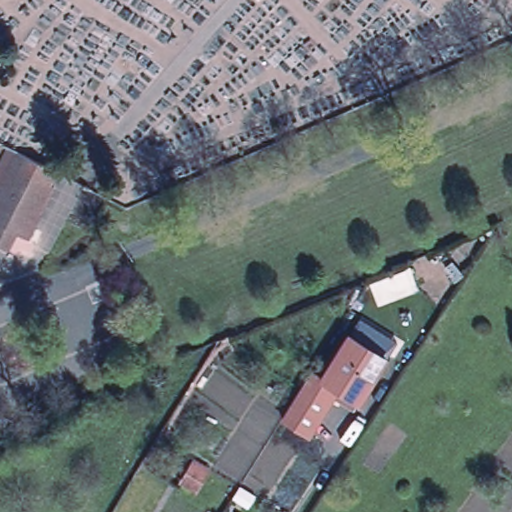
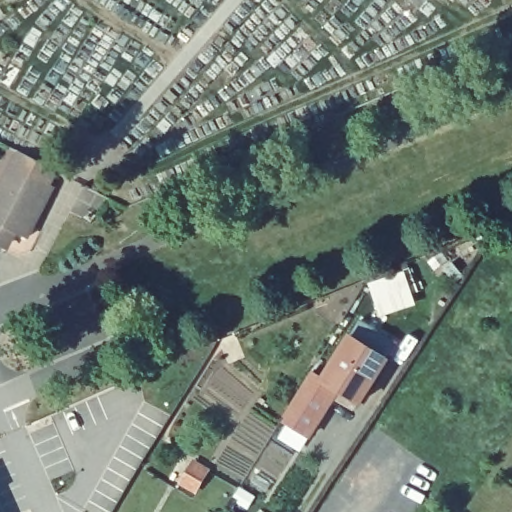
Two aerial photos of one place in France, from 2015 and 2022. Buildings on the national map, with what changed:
unchanged [(23,152),(30,156),(46,164),(40,176),(59,185),(31,236),(20,231),(16,239),(12,246),(0,240),(0,174),(14,148),(23,152)]
unchanged [(397,275),(404,294),(372,306),(365,287),(397,275)]
unchanged [(316,371),(330,378),(354,338),(364,322),(399,343),(389,360),(364,402),(362,401),(358,407),(339,395),(313,435),(286,418),(316,371)]
unchanged [(191,496),(189,496),(176,488),(187,468),(202,476),(191,496)]

